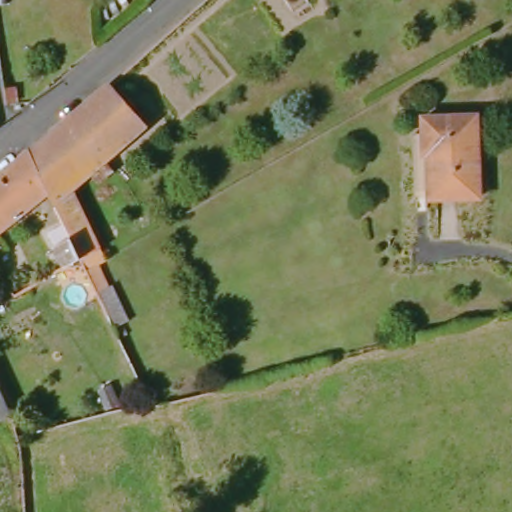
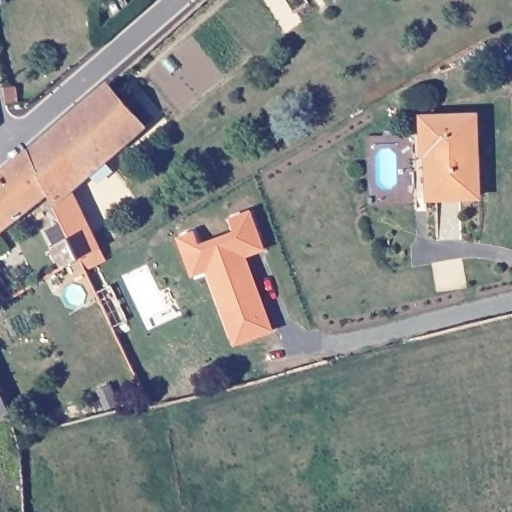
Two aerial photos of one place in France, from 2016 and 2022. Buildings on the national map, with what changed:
unchanged [(76,259),(48,199),(26,154),(105,85),(141,130),(101,164),(68,192),(96,253),(101,262),(93,267),(103,290),(93,295),(83,272),(76,259)]
unchanged [(0,101),(0,87),(6,89),(5,105),(0,101)]
unchanged [(473,201),(429,204),(427,159),(419,159),(417,125),(471,122),(473,201)]
unchanged [(26,154),(48,199),(0,234),(0,174),(26,154)]
new [(225,316),(208,270),(193,276),(178,238),(196,232),(201,246),(235,233),(229,219),(251,211),(264,249),(246,256),(273,331),(251,339),(235,345),(225,316)]
unchanged [(1,280),(0,281),(0,278),(1,280)]
new [(111,385),(119,405),(106,411),(98,390),(111,385)]
unchanged [(3,420),(0,421),(0,413),(3,420)]

